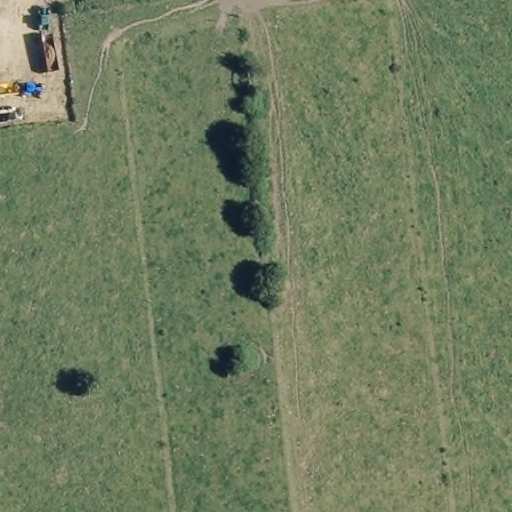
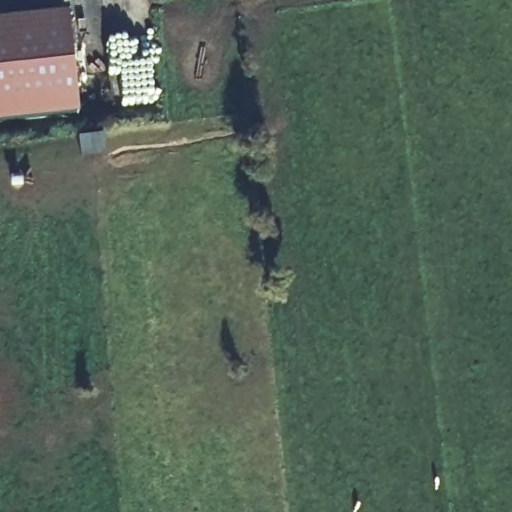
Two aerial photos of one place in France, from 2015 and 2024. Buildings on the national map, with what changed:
new [(75,120),(0,128),(0,27),(65,20),(75,120)]

